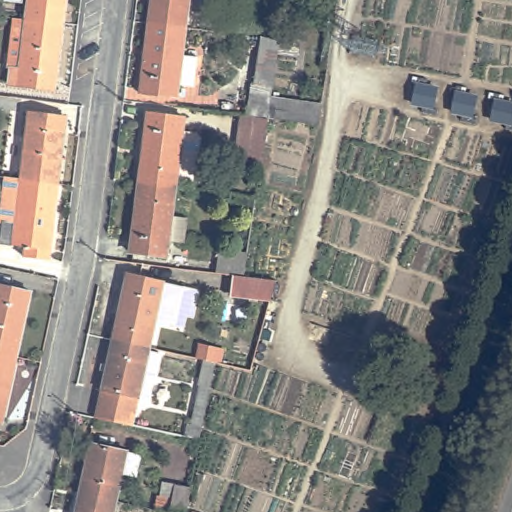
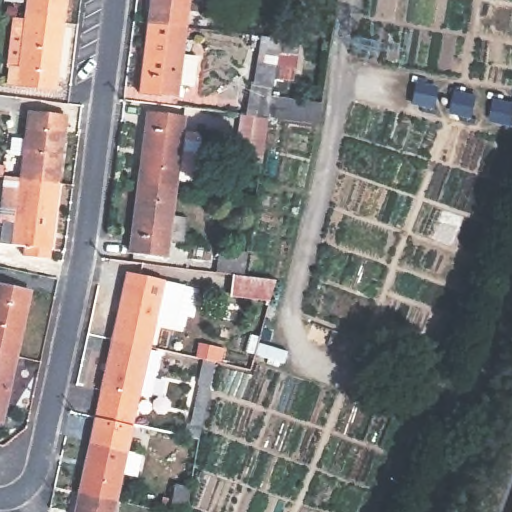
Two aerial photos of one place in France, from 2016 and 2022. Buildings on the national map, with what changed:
unchanged [(22,4),(4,1),(4,0),(23,0),(22,4)]
unchanged [(28,0),(66,0),(64,24),(25,19),(28,0)]
unchanged [(155,0),(194,0),(190,28),(152,23),(155,0)]
unchanged [(55,90),(8,84),(10,69),(6,68),(13,18),(25,19),(64,24),(55,90)]
unchanged [(198,87),(184,85),(182,97),(144,93),(152,23),(190,28),(187,55),(202,57),(198,87)]
unchanged [(280,40),(298,42),(296,57),(278,55),(280,40)]
unchanged [(247,116),(255,67),(275,70),(271,98),(267,119),(247,116)]
unchanged [(417,83),(436,87),(432,107),(413,103),(417,83)]
unchanged [(455,92),(475,96),(471,115),(451,111),(455,92)]
unchanged [(321,105),(318,125),(267,119),(271,98),(321,105)]
unchanged [(512,103),(512,121),(511,124),(490,119),(495,100),(512,103)]
unchanged [(34,106),(71,111),(64,179),(25,174),(34,106)]
unchanged [(260,164),(234,160),(240,115),(247,116),(267,119),(260,164)]
unchanged [(138,188),(146,118),(184,123),(182,138),(195,139),(199,144),(195,174),(190,178),(178,177),(176,193),(138,188)]
unchanged [(64,179),(55,253),(30,250),(30,241),(6,238),(9,220),(6,219),(11,173),(25,174),(64,179)]
unchanged [(185,249),(169,248),(167,262),(129,257),(138,188),(176,193),(172,221),(188,223),(185,249)]
unchanged [(230,293),(232,275),(215,273),(219,250),(246,253),(243,276),(276,281),(270,302),(234,297),(230,293)]
unchanged [(131,274),(189,287),(180,326),(161,321),(155,349),(116,342),(131,274)]
unchanged [(30,293),(17,358),(0,354),(0,287),(30,293)]
unchanged [(154,352),(165,354),(155,398),(145,394),(137,426),(100,418),(116,342),(155,349),(154,352)]
unchanged [(190,428),(200,385),(197,385),(204,360),(197,359),(200,345),(222,350),(220,364),(215,363),(199,440),(184,437),(186,427),(190,428)]
unchanged [(4,422),(0,422),(0,354),(17,358),(4,422)]
unchanged [(132,453),(146,456),(142,478),(127,475),(121,502),(84,493),(95,444),(132,453)]
unchanged [(172,500),(175,486),(190,489),(185,512),(179,512),(155,507),(157,498),(172,500)]
unchanged [(121,502),(119,512),(80,512),(84,493),(121,502)]

